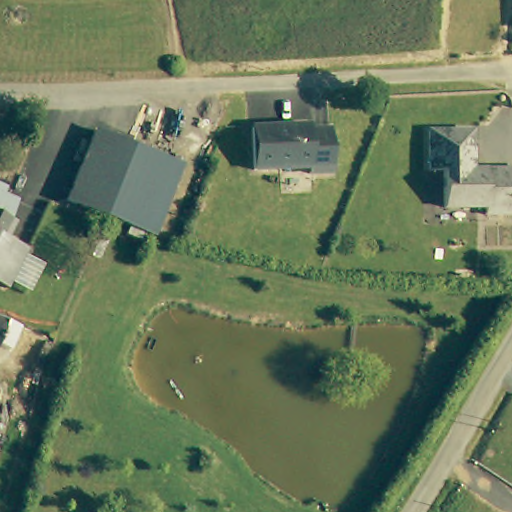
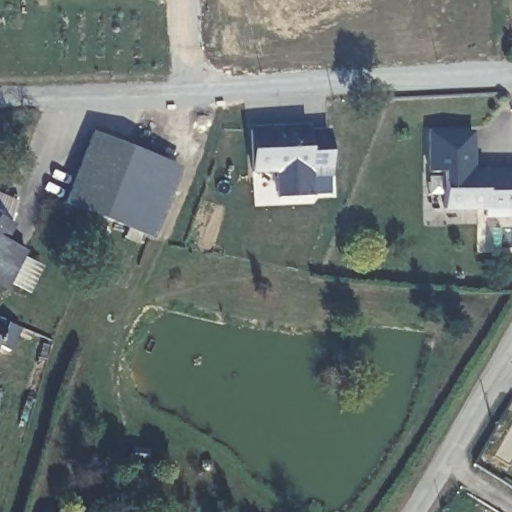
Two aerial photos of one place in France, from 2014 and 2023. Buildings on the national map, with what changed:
unchanged [(254,131),(310,130),(310,135),(330,134),(332,179),(310,180),(310,173),(255,175),(254,131)]
unchanged [(475,173),(487,173),(487,170),(512,170),(512,216),(487,216),(487,209),(446,209),(446,171),(431,171),(431,132),(475,132),(475,173)]
unchanged [(152,242),(141,237),(131,232),(105,221),(68,205),(97,136),(134,152),(144,157),(161,165),(170,169),(181,174),(152,242)]
unchanged [(19,202),(11,219),(15,220),(7,237),(0,253),(0,193),(19,202)]
unchanged [(29,247),(10,287),(0,283),(0,253),(7,237),(29,247)]
unchanged [(9,324),(0,342),(0,320),(9,324)]

